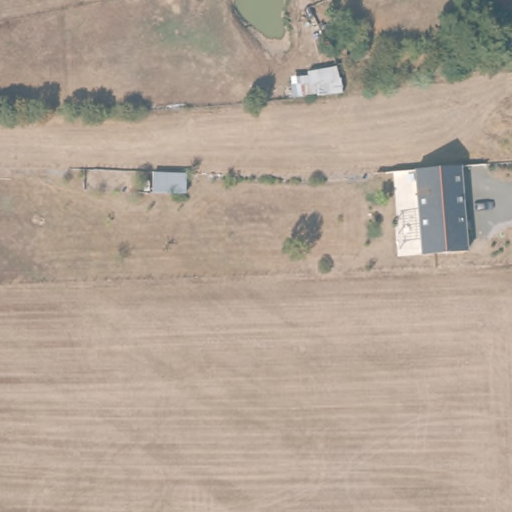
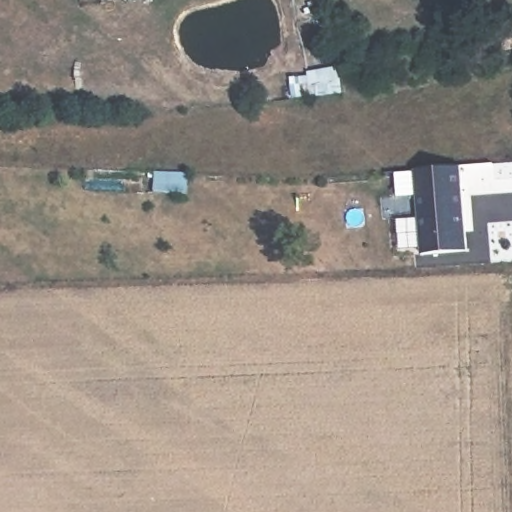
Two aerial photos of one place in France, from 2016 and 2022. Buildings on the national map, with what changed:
unchanged [(342,92),(291,97),(290,77),(307,74),(306,71),(336,66),(342,92)]
unchanged [(461,160),(467,222),(422,224),(416,164),(461,160)]
unchanged [(467,222),(469,244),(425,249),(422,224),(467,222)]

